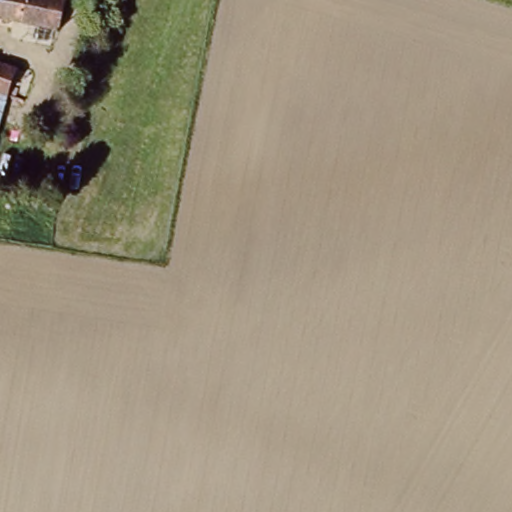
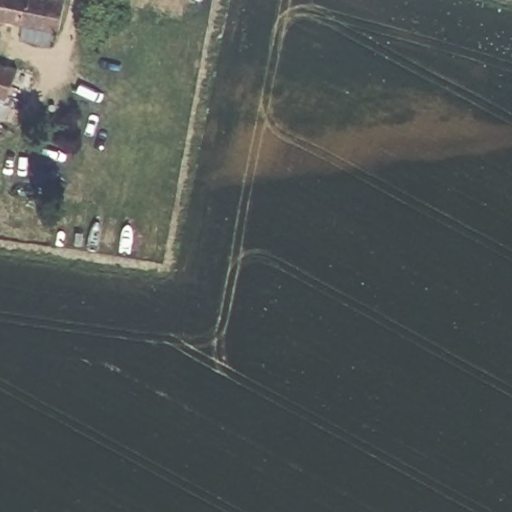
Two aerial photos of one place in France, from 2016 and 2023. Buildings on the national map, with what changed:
unchanged [(0,15),(0,0),(64,0),(58,27),(0,15)]
unchanged [(9,91),(0,88),(0,61),(18,67),(9,91)]
unchanged [(0,147),(0,89),(9,92),(0,147)]

